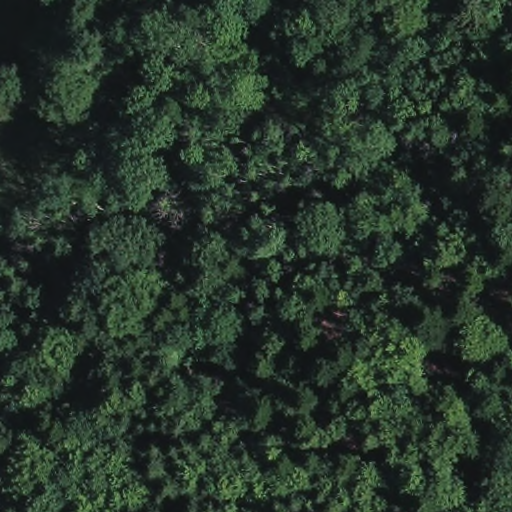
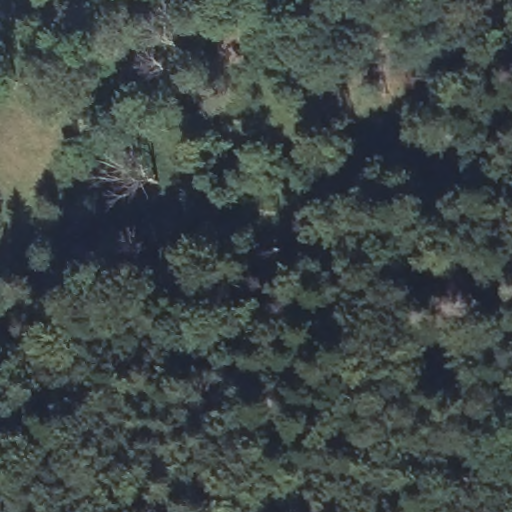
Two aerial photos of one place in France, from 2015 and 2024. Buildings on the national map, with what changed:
unchanged [(141,71),(136,101),(116,97),(121,68),(141,71)]

